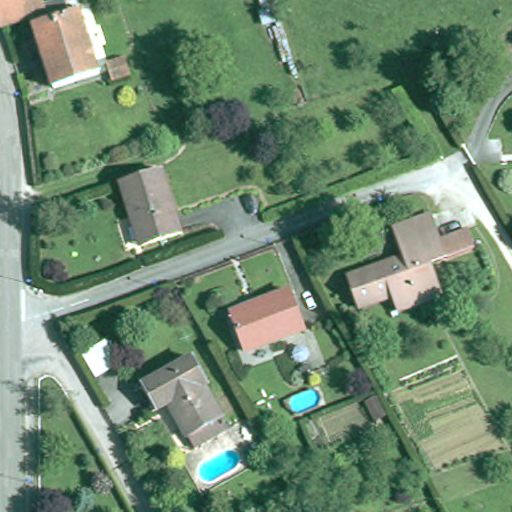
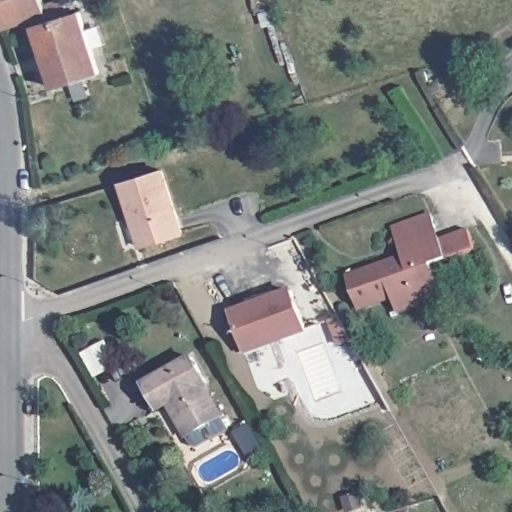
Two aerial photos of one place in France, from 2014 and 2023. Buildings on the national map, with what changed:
unchanged [(0,22),(0,21),(0,0),(77,0),(79,6),(99,69),(53,84),(32,13),(0,22)]
unchanged [(128,74),(112,80),(108,63),(123,58),(128,74)]
unchanged [(131,212),(120,177),(161,165),(182,229),(144,241),(141,242),(131,212)]
unchanged [(442,295),(399,311),(393,296),(359,308),(349,277),(383,264),(384,270),(406,261),(394,228),(431,215),(439,240),(469,229),(475,249),(447,259),(431,265),(442,295)]
unchanged [(306,324),(244,347),(231,308),(291,286),(306,324)]
unchanged [(206,376),(203,378),(228,425),(194,444),(168,397),(158,405),(153,407),(138,382),(143,380),(193,352),(206,376)]

